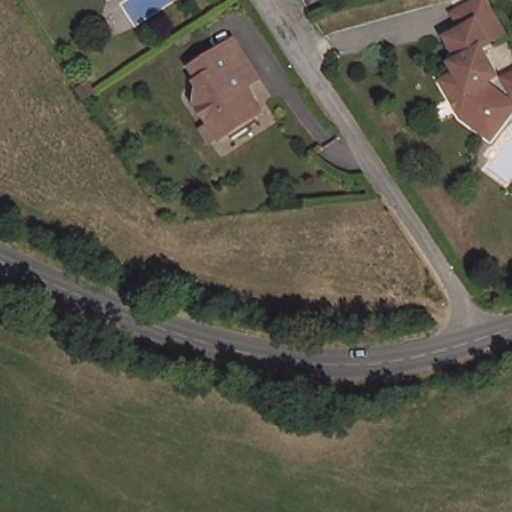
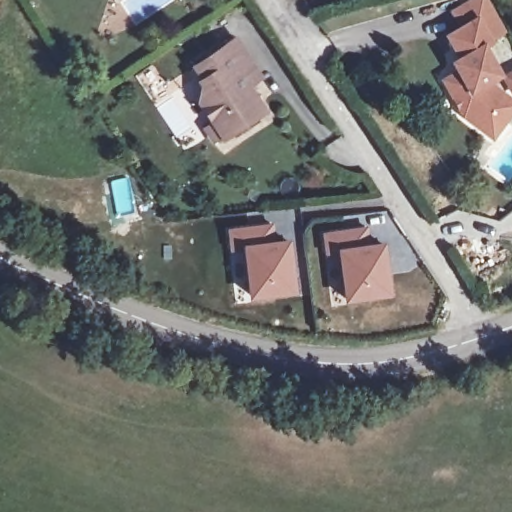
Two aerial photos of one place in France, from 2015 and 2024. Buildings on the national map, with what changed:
unchanged [(478,6),(501,43),(485,53),(472,30),(459,39),(459,38),(450,24),(478,6)]
unchanged [(487,149),(482,144),(458,126),(439,90),(453,81),(451,79),(447,72),(457,66),(444,47),(459,38),(459,39),(472,30),(485,53),(479,57),(495,83),(482,93),(507,113),(512,118),(487,149)]
unchanged [(201,107),(210,100),(201,87),(205,85),(195,71),(234,44),(250,68),(260,81),(247,89),(265,113),(225,140),(222,135),(213,142),(205,130),(214,123),(201,107)]
unchanged [(512,78),(512,99),(510,100),(500,86),(512,78)]
new [(295,290),(248,296),(240,249),(230,250),(227,226),(274,220),(276,237),(289,236),(295,290)]
new [(393,293),(343,301),(335,254),(325,256),(321,230),(369,224),(371,240),(386,238),(393,293)]

